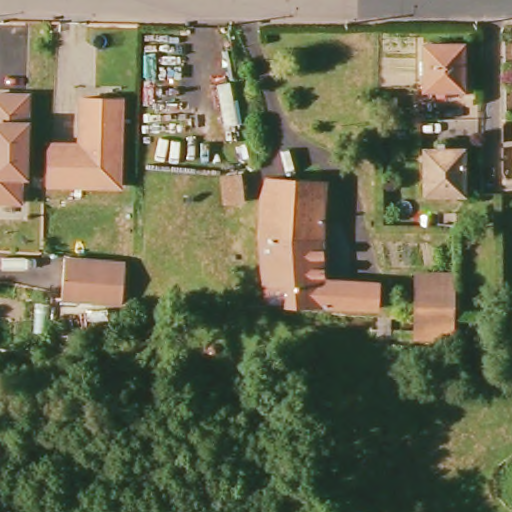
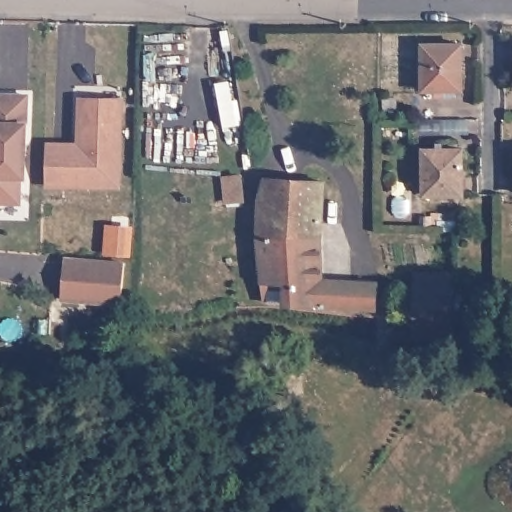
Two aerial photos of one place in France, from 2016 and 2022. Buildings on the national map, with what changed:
unchanged [(461,44),(461,90),(422,89),(422,44),(461,44)]
unchanged [(26,101),(21,181),(17,180),(15,207),(0,205),(0,99),(26,101)]
unchanged [(118,100),(117,187),(48,186),(47,146),(78,146),(78,138),(78,99),(118,100)]
unchanged [(461,149),(461,194),(423,194),(423,149),(461,149)]
unchanged [(323,182),(320,232),(321,280),(391,283),(390,304),(376,303),(376,309),(265,302),(257,235),(260,197),(264,180),(323,182)]
unchanged [(118,307),(58,302),(61,262),(121,267),(118,307)]
unchanged [(414,292),(414,276),(450,277),(450,292),(451,320),(413,317),(414,292)]

